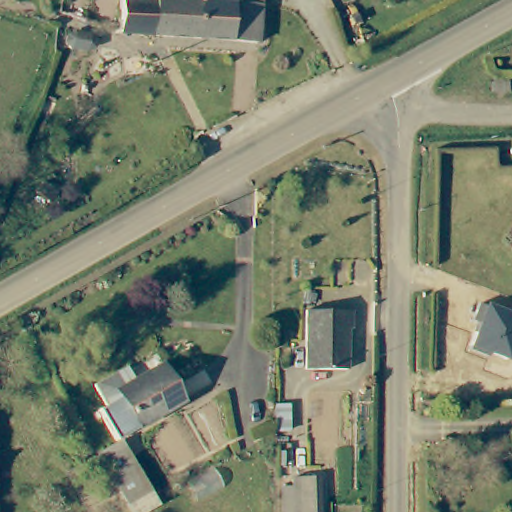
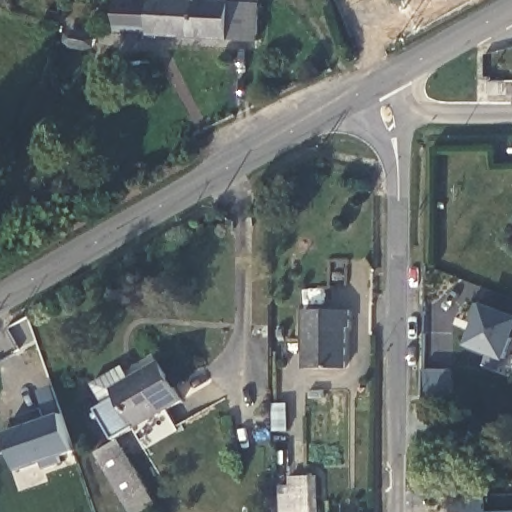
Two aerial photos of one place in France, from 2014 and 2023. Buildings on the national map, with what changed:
unchanged [(120,0),(260,0),(260,3),(258,41),(119,34),(120,0)]
unchanged [(68,39),(75,35),(86,36),(90,36),(95,40),(95,48),(89,51),(82,51),(74,50),(67,46),(68,39)]
unchanged [(467,348),(472,335),(469,333),(472,323),(468,321),(476,306),(482,309),(484,305),(512,315),(512,345),(505,361),(487,353),(485,357),(467,351),(467,348)]
unchanged [(350,327),(346,327),(346,368),(305,368),(305,309),(350,309),(350,327)]
unchanged [(124,436),(107,405),(114,401),(104,381),(135,365),(164,350),(170,363),(190,402),(124,436)]
new [(19,471),(6,433),(19,430),(15,420),(45,409),(39,392),(52,386),(61,415),(75,452),(19,471)]
unchanged [(286,393),(286,419),(273,419),(273,393),(286,393)]
unchanged [(147,486),(125,498),(101,453),(124,441),(147,486)]
unchanged [(285,480),(296,480),(296,471),(323,471),(323,512),(285,512),(285,480)]

